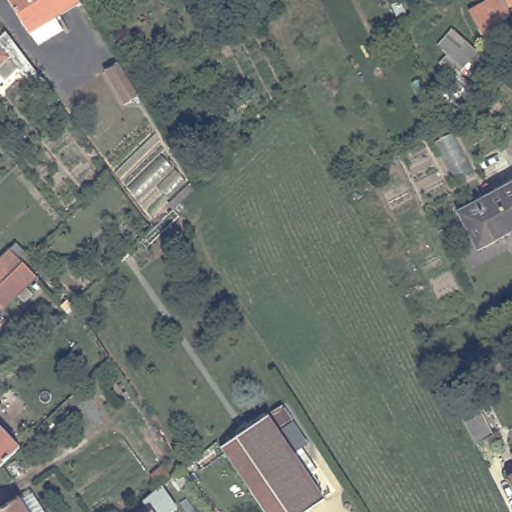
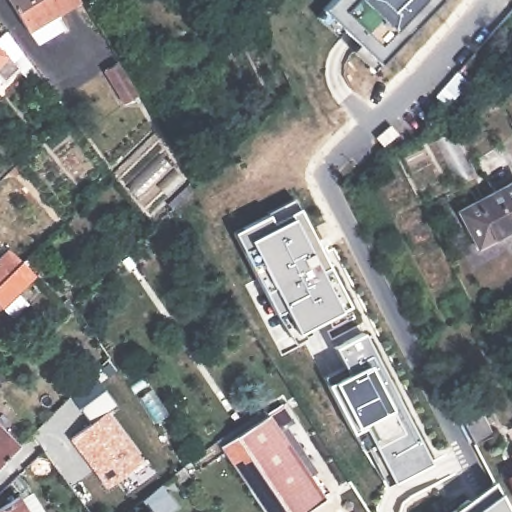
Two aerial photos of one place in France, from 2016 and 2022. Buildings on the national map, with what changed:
unchanged [(68,29),(40,44),(27,21),(14,0),(83,0),(59,13),(68,29)]
unchanged [(352,52),(361,45),(344,29),(336,35),(315,17),(324,9),(332,0),(440,0),(380,62),(372,69),(352,52)]
demolished [(512,18),(512,29),(487,43),(467,9),(484,0),(512,0),(512,7),(507,9),(512,18)]
demolished [(438,64),(447,53),(438,44),(451,27),(478,50),(456,84),(438,64)]
unchanged [(6,33),(46,86),(40,92),(6,58),(0,64),(0,38),(6,33)]
unchanged [(125,103),(108,75),(122,67),(139,95),(125,103)]
unchanged [(0,81),(0,77),(2,79),(0,81)]
unchanged [(464,214),(512,190),(512,239),(484,254),(464,214)]
new [(297,203),(300,210),(351,309),(298,335),(286,313),(277,317),(244,253),(235,234),(244,230),(270,217),(297,203)]
unchanged [(13,254),(25,268),(26,267),(39,281),(29,292),(35,298),(27,306),(21,299),(6,314),(5,313),(0,318),(0,267),(13,254)]
new [(348,376),(335,349),(365,335),(433,467),(388,491),(354,438),(327,386),(348,376)]
new [(138,480),(130,471),(106,489),(68,439),(88,424),(78,410),(102,391),(115,407),(107,413),(142,461),(146,459),(153,469),(138,480)]
unchanged [(458,411),(476,402),(492,433),(474,442),(458,411)]
unchanged [(224,447),(271,414),(327,498),(305,512),(268,512),(224,447)]
unchanged [(23,451),(0,473),(0,428),(23,451)]
unchanged [(512,451),(512,458),(511,456),(512,451)]
unchanged [(168,487),(183,474),(193,489),(177,500),(168,487)]
unchanged [(512,474),(512,484),(508,476),(512,474)]
new [(470,502),(496,484),(510,512),(476,512),(470,502)]
unchanged [(0,512),(0,509),(26,492),(39,512),(0,512)]
new [(470,502),(476,512),(457,512),(470,502)]

